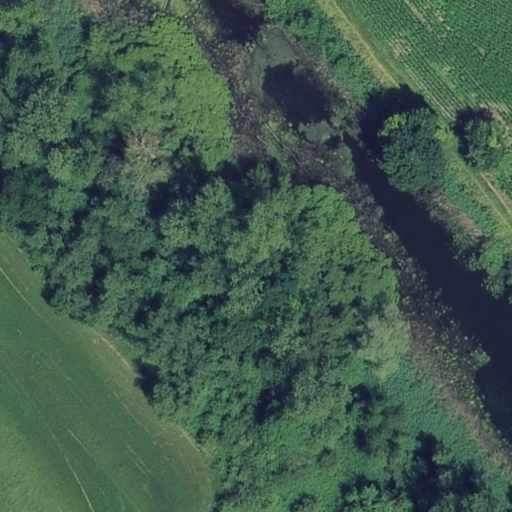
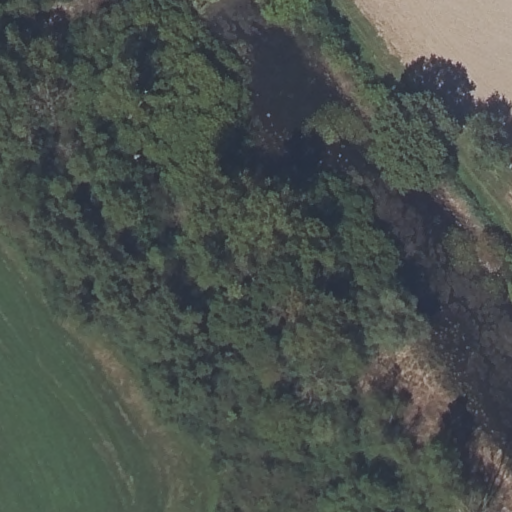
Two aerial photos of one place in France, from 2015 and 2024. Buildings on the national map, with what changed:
[]

